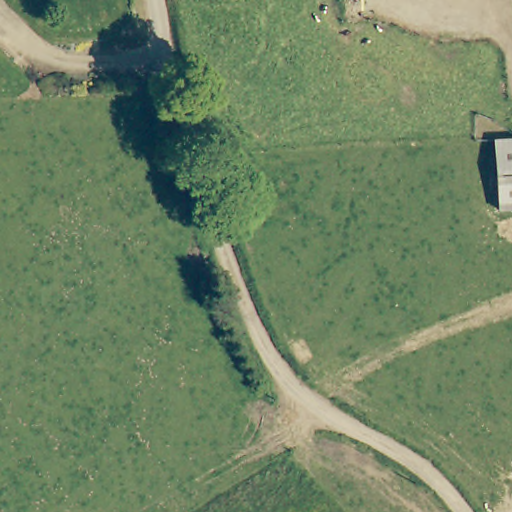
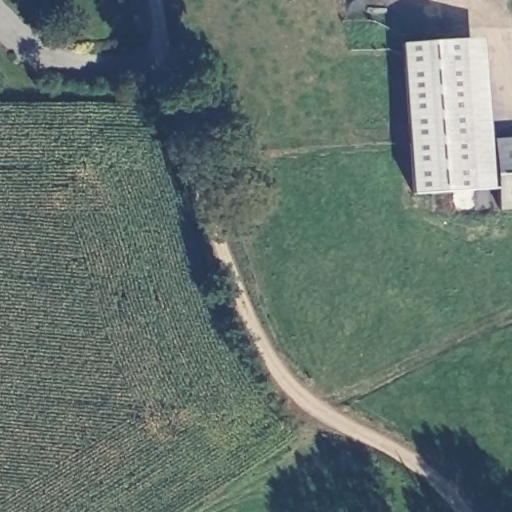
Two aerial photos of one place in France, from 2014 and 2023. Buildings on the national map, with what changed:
new [(401,45),(481,40),(491,187),(411,194),(401,45)]
unchanged [(496,141),(507,140),(512,140),(512,212),(503,213),(496,141)]

